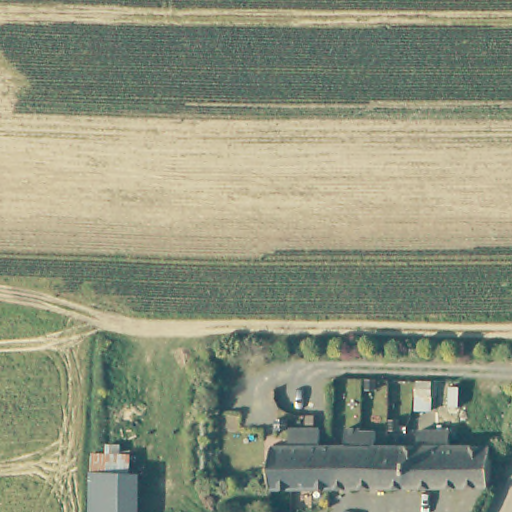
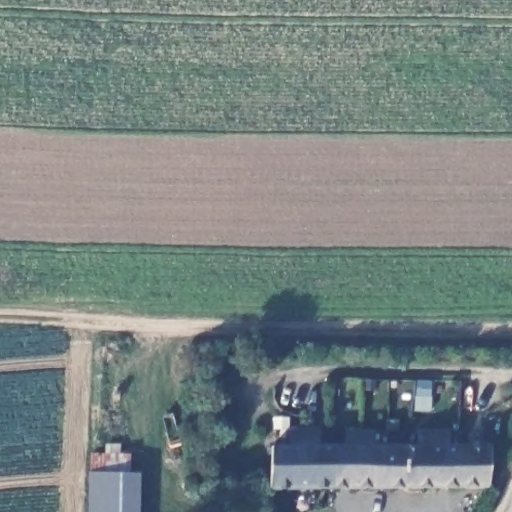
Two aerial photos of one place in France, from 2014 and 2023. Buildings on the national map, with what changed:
unchanged [(274,443),(332,443),(399,444),(402,444),(420,444),(421,429),(452,429),(452,435),(452,444),(496,445),(495,487),(272,486),(274,443)]
unchanged [(141,462),(141,512),(84,512),(84,462),(141,462)]

